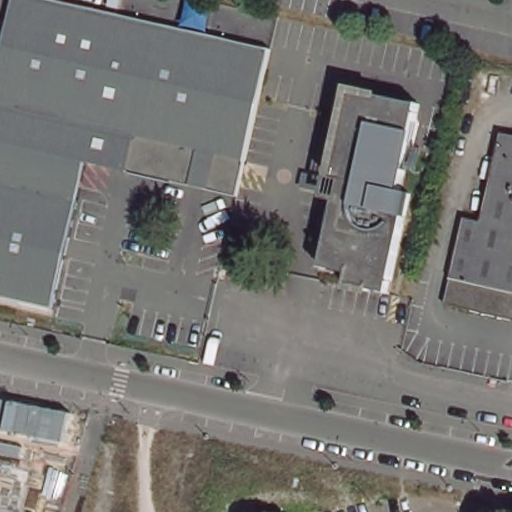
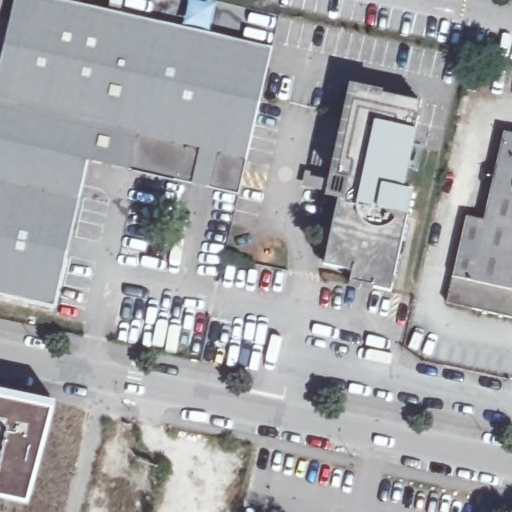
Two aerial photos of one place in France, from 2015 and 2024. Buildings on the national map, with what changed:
unchanged [(54,301),(0,288),(0,57),(13,0),(64,0),(271,47),(237,195),(86,161),(54,301)]
unchanged [(349,283),(351,272),(322,266),(337,195),(340,196),(344,179),(331,176),(350,87),(420,102),(400,190),(410,192),(391,280),(389,292),(349,283)]
unchanged [(452,304),(470,217),(486,221),(506,132),(512,134),(512,317),(452,304)]
new [(28,506),(0,498),(0,391),(56,403),(28,506)]

